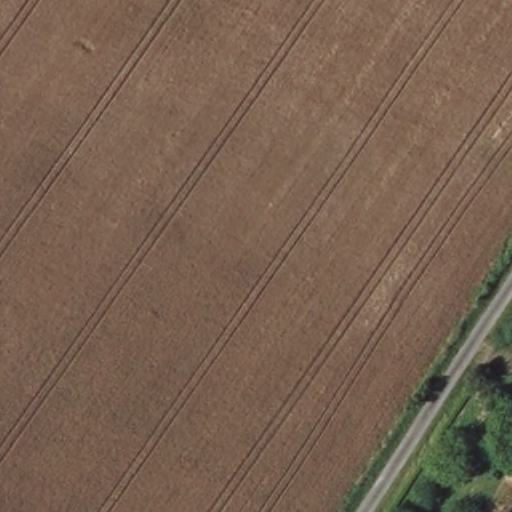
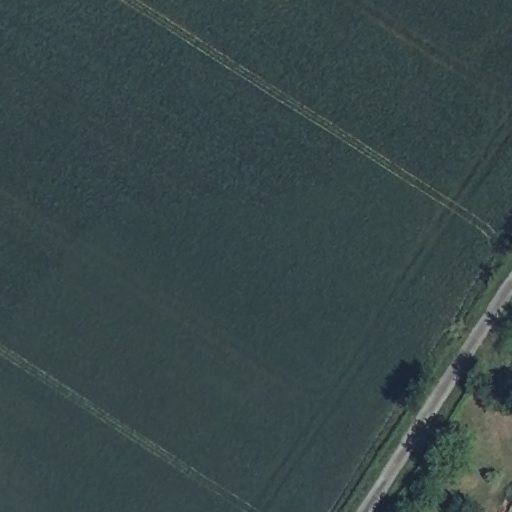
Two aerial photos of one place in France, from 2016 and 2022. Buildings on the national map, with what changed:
[]

